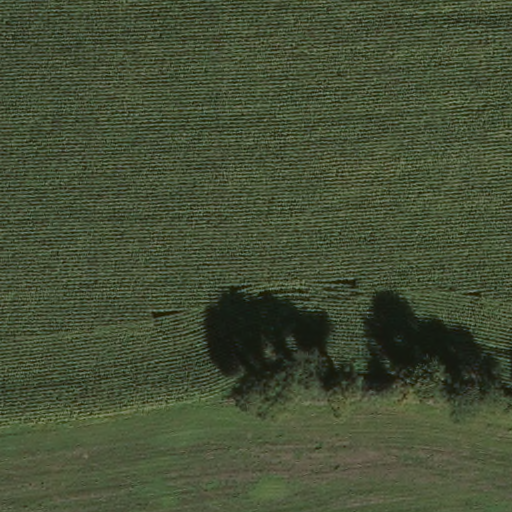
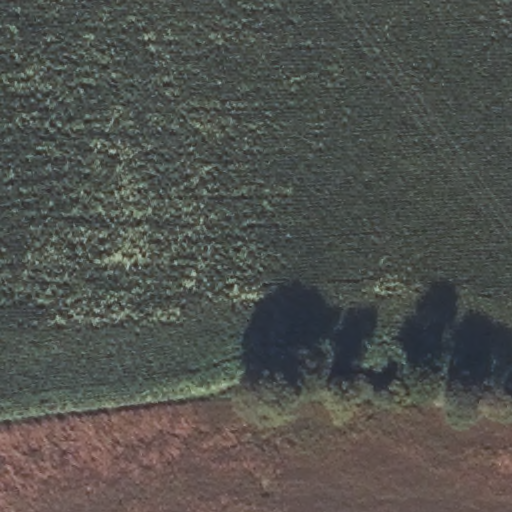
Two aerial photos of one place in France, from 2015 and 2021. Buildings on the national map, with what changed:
[]

